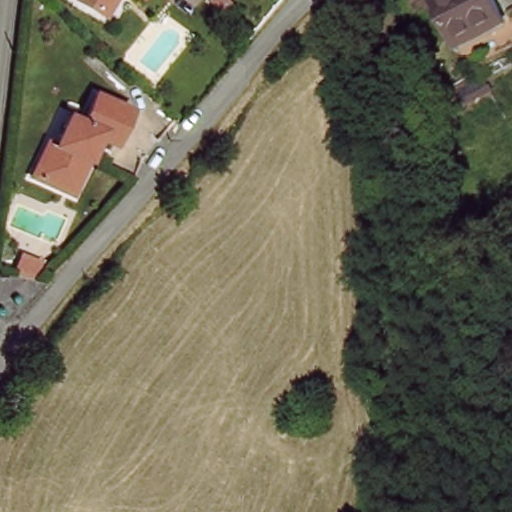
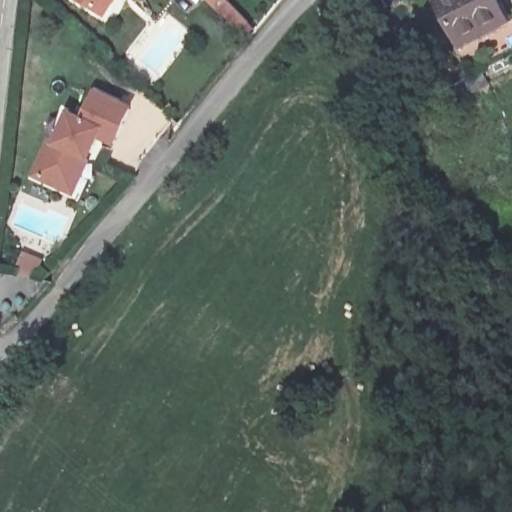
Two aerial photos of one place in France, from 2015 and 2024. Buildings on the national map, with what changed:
unchanged [(99,4),(89,0),(115,0),(110,10),(99,4)]
unchanged [(512,16),(467,44),(442,0),(502,0),(512,16)]
unchanged [(131,110),(116,142),(100,134),(95,147),(84,157),(68,189),(38,174),(55,143),(58,145),(73,113),(85,120),(99,95),(131,110)]
unchanged [(0,289),(0,277),(1,272),(33,279),(28,296),(0,289)]
unchanged [(0,316),(0,304),(6,305),(3,317),(0,316)]

